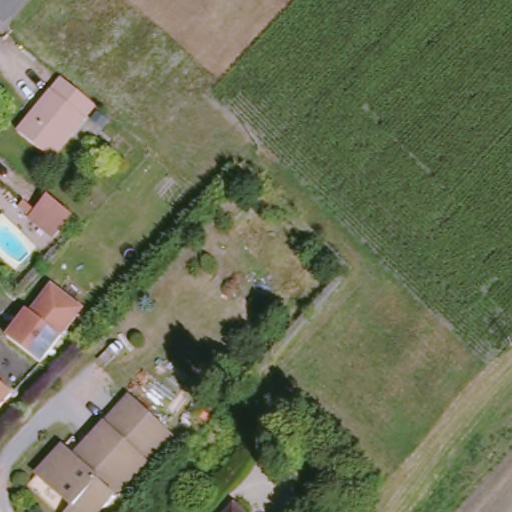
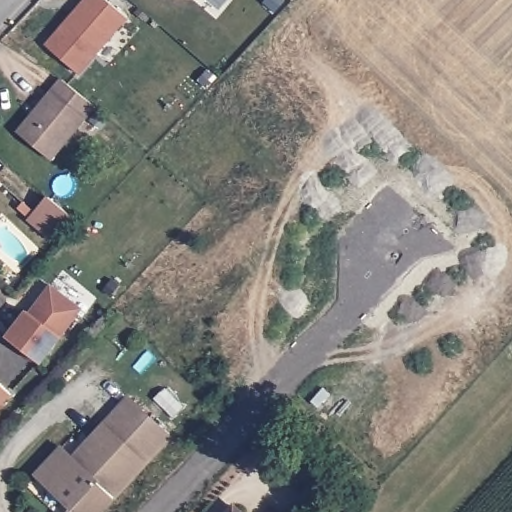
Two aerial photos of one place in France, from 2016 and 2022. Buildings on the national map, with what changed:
new [(46,45),(84,0),(107,0),(127,17),(78,74),(46,45)]
new [(286,0),(287,1),(278,11),(267,2),(269,0),(286,0)]
unchanged [(91,102),(50,154),(18,127),(59,74),(91,102)]
unchanged [(75,222),(55,242),(22,214),(39,194),(75,222)]
unchanged [(29,312),(35,317),(42,307),(41,303),(53,288),(83,311),(42,364),(9,338),(29,312)]
unchanged [(13,395),(0,408),(0,383),(13,395)]
unchanged [(63,443),(75,451),(80,446),(105,419),(130,392),(174,433),(100,512),(85,512),(49,477),(40,470),(63,443)]
unchanged [(216,412),(187,443),(181,438),(211,407),(216,412)]
unchanged [(341,477),(319,501),(286,471),(308,447),(341,477)]
unchanged [(241,512),(230,512),(235,507),(241,512)]

